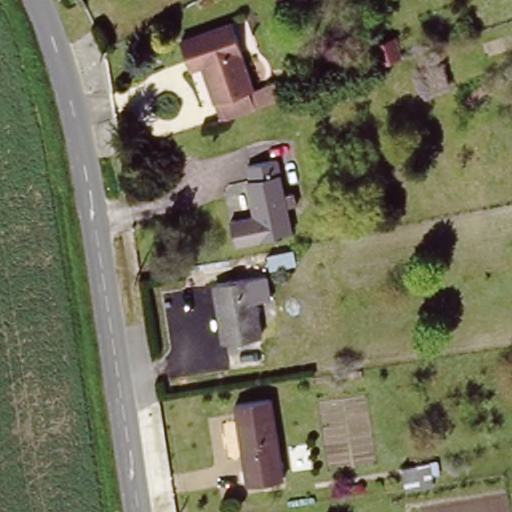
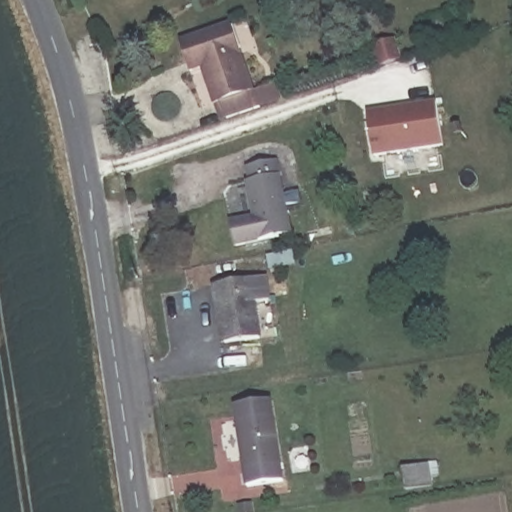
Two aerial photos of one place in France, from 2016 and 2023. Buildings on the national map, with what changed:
unchanged [(271,102),(259,106),(226,118),(219,99),(213,101),(201,62),(213,58),(208,43),(235,35),(252,89),(264,84),(271,102)]
new [(377,156),(369,113),(438,101),(445,145),(377,156)]
unchanged [(279,164),(286,199),(300,198),(303,212),(287,214),(290,239),(259,244),(249,184),(253,184),(251,168),(279,164)]
unchanged [(244,280),(246,296),(253,296),(259,337),(223,342),(216,283),(244,280)]
unchanged [(274,402),(283,467),(248,472),(238,406),(274,402)]
unchanged [(443,465),(444,477),(438,478),(439,489),(409,494),(408,470),(443,465)]

